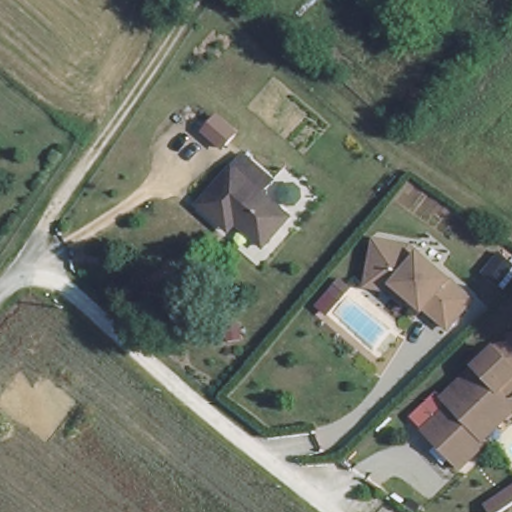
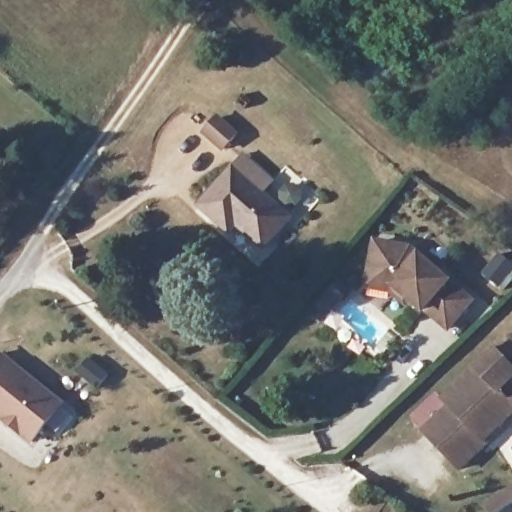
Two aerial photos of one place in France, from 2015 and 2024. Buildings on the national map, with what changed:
unchanged [(231,219),(224,226),(200,206),(243,154),(276,181),(266,194),(293,216),(266,248),(231,219)]
unchanged [(369,283),(372,267),(377,238),(412,244),(473,298),(449,325),(427,306),(425,308),(410,295),(406,299),(369,283)]
unchanged [(512,399),(512,404),(482,433),(491,442),(464,468),(427,430),(453,405),(446,398),(499,347),(512,344),(512,394),(509,397),(512,399)]
new [(13,361),(65,403),(31,446),(0,421),(0,351),(13,361)]
unchanged [(491,442),(482,433),(512,404),(512,420),(491,442)]
unchanged [(488,512),(485,508),(512,485),(512,502),(500,512),(488,512)]

